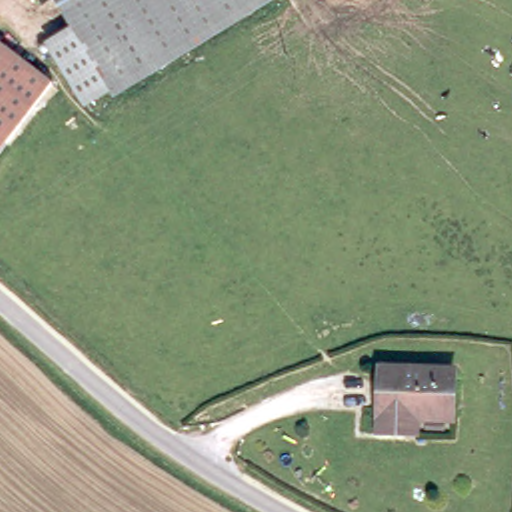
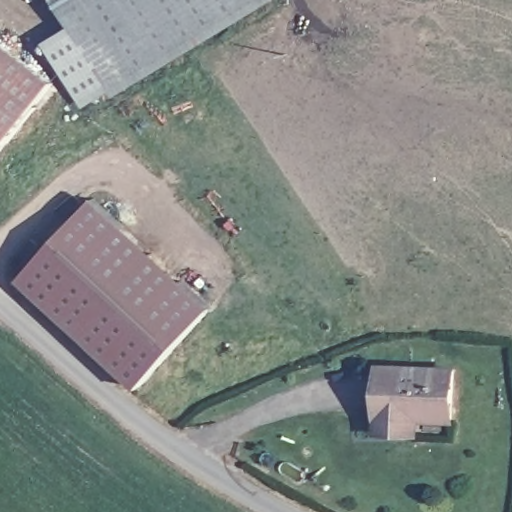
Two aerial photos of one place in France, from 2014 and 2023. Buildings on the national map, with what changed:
unchanged [(55,0),(272,0),(102,97),(82,109),(45,46),(72,30),(55,0)]
unchanged [(57,82),(0,159),(0,41),(57,82)]
new [(212,307),(139,388),(18,279),(95,196),(212,307)]
unchanged [(409,432),(383,432),(385,364),(463,367),(462,417),(426,417),(426,432),(409,432)]

